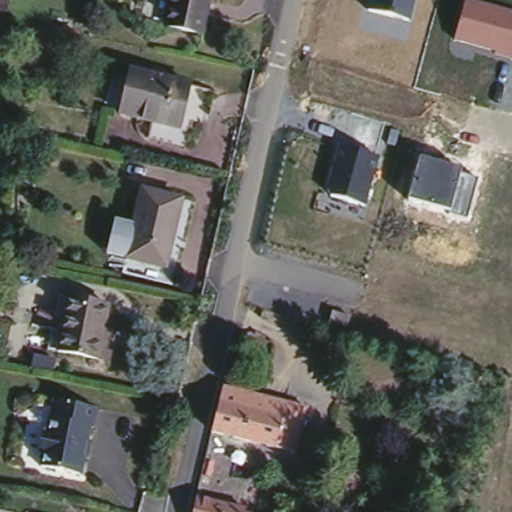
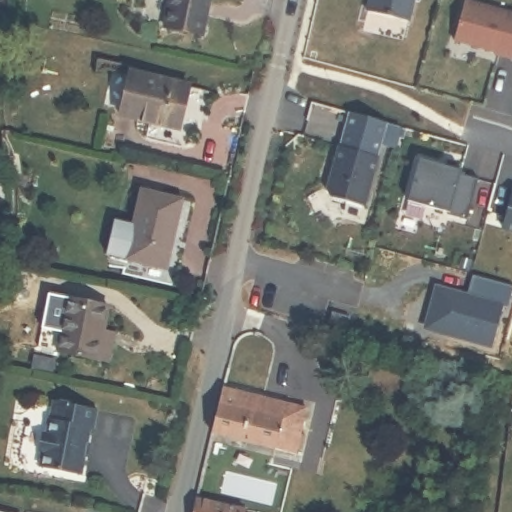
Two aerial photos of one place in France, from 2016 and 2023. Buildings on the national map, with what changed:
unchanged [(205,32),(168,25),(173,0),(212,0),(205,32)]
unchanged [(413,24),(368,12),(371,0),(418,0),(413,24)]
unchanged [(512,62),(492,57),(492,53),(454,43),(466,0),(470,0),(512,11),(512,62)]
unchanged [(187,79),(177,125),(120,113),(129,67),(187,79)]
unchanged [(345,111),(387,124),(380,156),(365,208),(323,195),(337,145),(345,111)]
unchanged [(462,170),(460,176),(480,180),(470,221),(447,216),(450,211),(407,200),(420,158),(462,170)]
unchanged [(180,198),(165,267),(126,258),(140,189),(180,198)]
new [(512,232),(503,230),(512,197),(512,232)]
new [(466,294),(471,274),(512,285),(512,287),(506,307),(502,305),(491,346),(446,333),(447,329),(425,323),(435,286),(466,294)]
unchanged [(109,363),(95,361),(56,353),(67,296),(105,305),(101,331),(115,334),(109,363)]
unchanged [(298,452),(217,434),(215,434),(224,391),(232,394),(308,411),(298,452)]
unchanged [(89,458),(85,456),(80,473),(41,465),(45,452),(40,450),(45,434),(49,434),(56,401),(99,410),(95,429),(91,429),(87,445),(92,446),(89,458)]
unchanged [(200,512),(204,499),(250,512),(200,512)]

